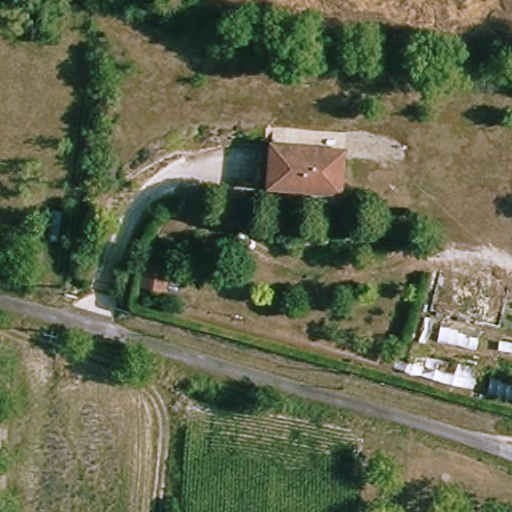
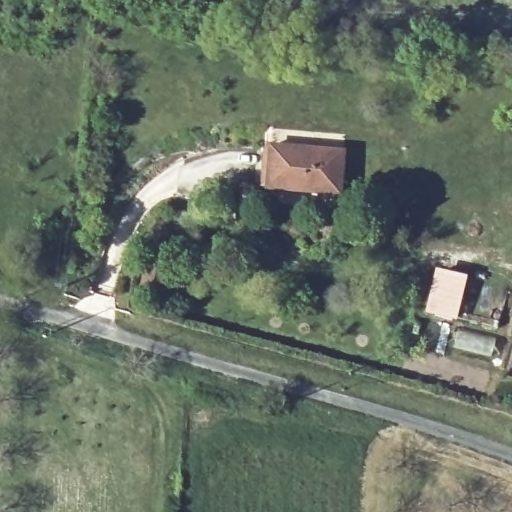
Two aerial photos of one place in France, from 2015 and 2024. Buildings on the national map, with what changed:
unchanged [(307,191),(272,189),(273,171),(275,149),(344,154),(343,186),(342,194),(307,191)]
new [(457,320),(429,315),(437,270),(466,275),(457,320)]

